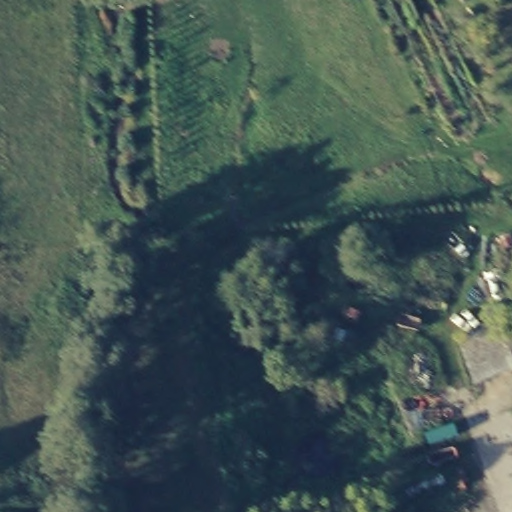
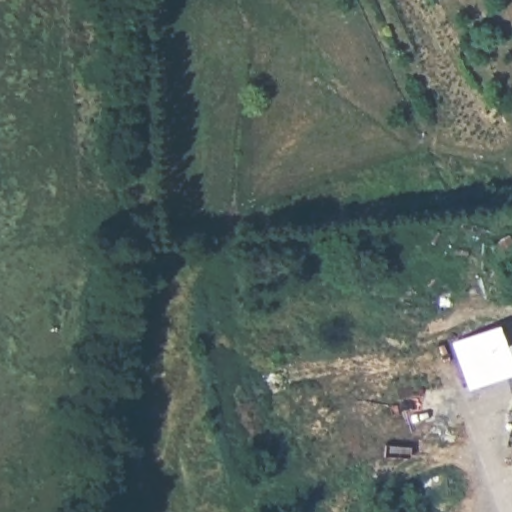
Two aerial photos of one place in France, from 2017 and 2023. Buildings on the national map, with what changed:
demolished [(498,325),(505,340),(512,338),(512,370),(477,384),(462,339),(498,325)]

